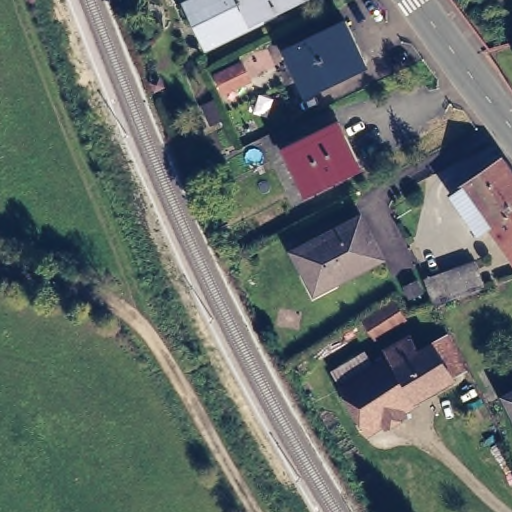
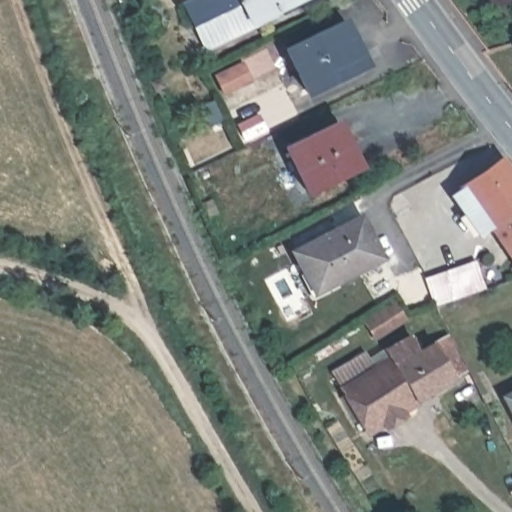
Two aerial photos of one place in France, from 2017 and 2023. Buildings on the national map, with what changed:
unchanged [(321,1),(248,30),(210,55),(186,4),(194,0),(320,0),(321,1)]
unchanged [(348,29),(365,64),(325,85),(326,90),(310,98),(291,58),(348,29)]
unchanged [(510,46),(506,35),(512,33),(512,55),(510,46)]
unchanged [(253,80),(223,94),(212,72),(243,58),(253,80)]
unchanged [(341,130),(358,166),(327,183),(329,188),(308,198),(289,155),(341,130)]
unchanged [(512,165),(512,212),(495,223),(482,231),(455,190),(505,157),(512,165)]
unchanged [(495,223),(512,212),(512,248),(495,223)]
unchanged [(365,214),(386,253),(318,288),(297,248),(365,214)]
unchanged [(426,281),(445,274),(447,278),(475,267),(482,283),(436,301),(426,281)]
unchanged [(338,376),(371,357),(378,369),(396,359),(391,349),(415,337),(424,351),(438,344),(451,337),(470,371),(458,378),(418,404),(413,405),(405,410),(369,432),(345,390),(346,388),(338,376)]
unchanged [(505,395),(512,392),(512,410),(505,395)]

